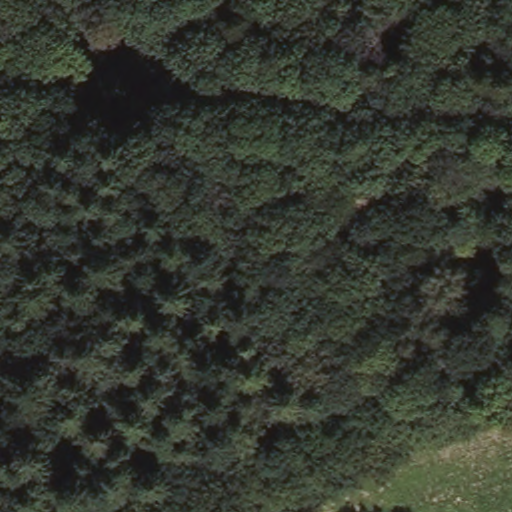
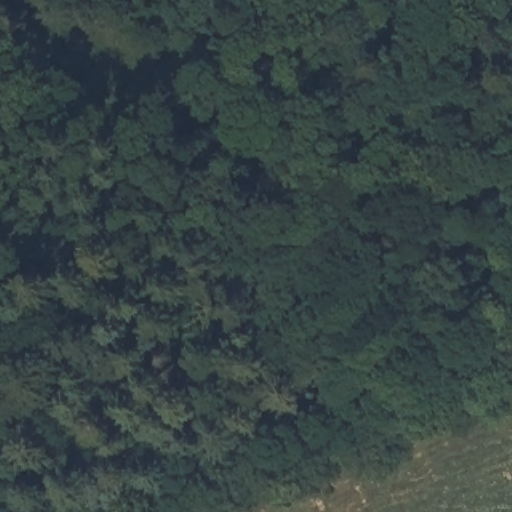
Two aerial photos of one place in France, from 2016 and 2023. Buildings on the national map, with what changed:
[]

